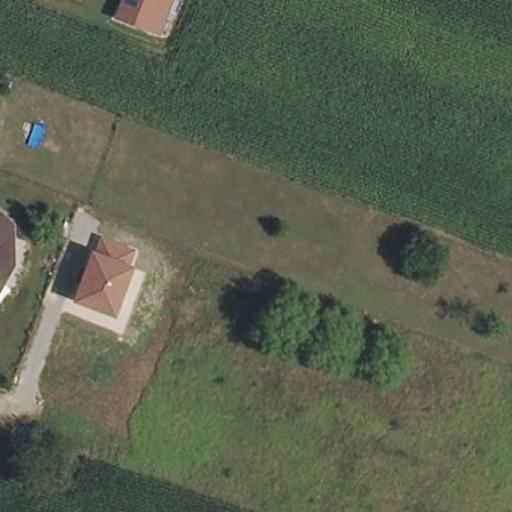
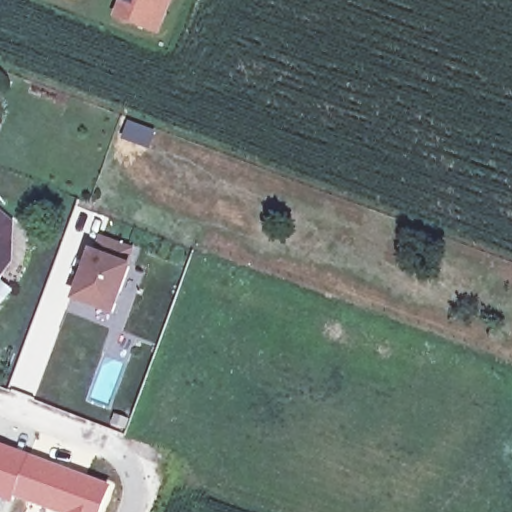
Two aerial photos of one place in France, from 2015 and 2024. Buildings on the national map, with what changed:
unchanged [(114,17),(119,0),(169,0),(156,33),(114,17)]
unchanged [(0,237),(0,210),(13,222),(0,237)]
unchanged [(135,249),(129,264),(133,266),(115,316),(72,300),(91,249),(95,251),(99,237),(135,249)]
unchanged [(6,252),(8,267),(0,277),(0,247),(6,252)]
new [(30,453),(15,498),(12,505),(2,501),(0,507),(0,442),(30,453)]
new [(30,453),(112,484),(102,512),(51,512),(15,498),(30,453)]

